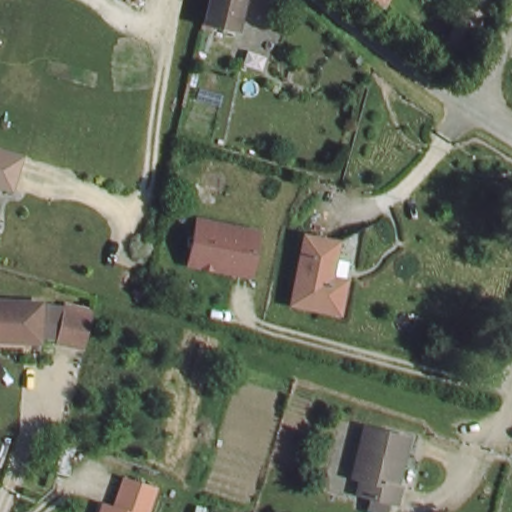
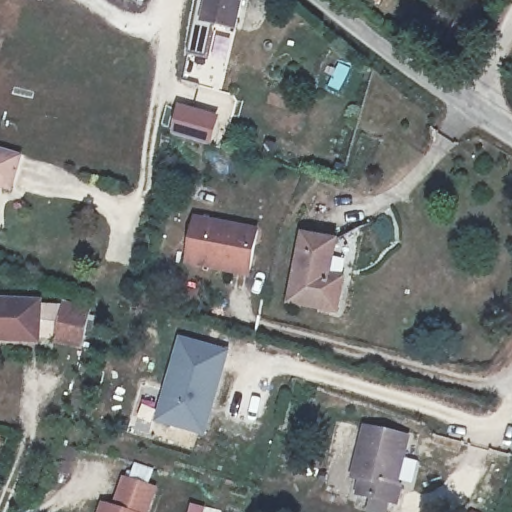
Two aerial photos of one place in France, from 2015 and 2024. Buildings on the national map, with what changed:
unchanged [(208,0),(243,0),(237,28),(204,20),(208,0)]
unchanged [(382,4),(374,0),(383,0),(382,4)]
new [(179,105),(220,116),(212,146),(171,135),(174,121),(179,105)]
unchanged [(0,183),(0,144),(17,150),(6,185),(0,183)]
unchanged [(250,269),(182,260),(190,213),(257,223),(250,269)]
unchanged [(325,282),(339,285),(332,313),(287,302),(301,234),(335,242),(325,282)]
unchanged [(41,343),(0,342),(0,303),(42,305),(41,343)]
unchanged [(58,339),(63,310),(64,305),(94,309),(92,316),(87,345),(58,339)]
new [(178,336),(230,351),(205,438),(154,423),(178,336)]
unchanged [(358,495),(360,480),(351,478),(361,428),(406,435),(397,485),(402,486),(399,502),(391,501),(388,512),(383,512),(372,510),(374,497),(358,495)]
unchanged [(111,509),(120,478),(153,487),(146,512),(101,512),(103,506),(111,509)]

